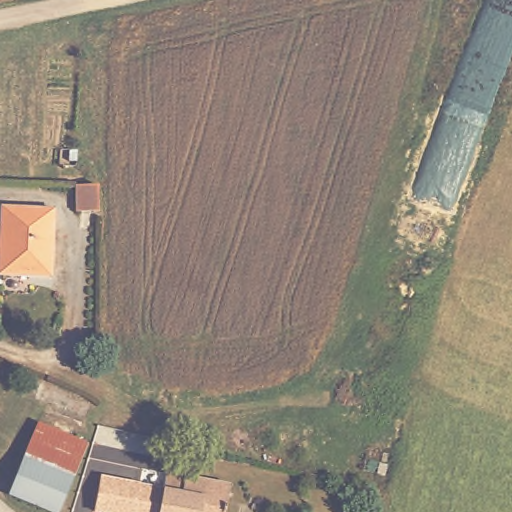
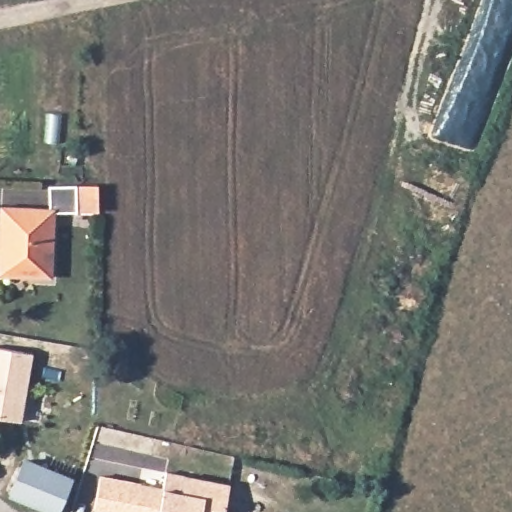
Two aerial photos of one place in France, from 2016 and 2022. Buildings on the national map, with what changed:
unchanged [(74,194),(96,194),(98,221),(75,221),(74,194)]
unchanged [(0,271),(0,203),(53,205),(53,273),(0,271)]
new [(34,353),(23,422),(0,418),(0,347),(34,353)]
unchanged [(223,495),(236,496),(234,512),(94,512),(102,461),(226,476),(223,495)]
unchanged [(46,512),(12,502),(24,468),(68,480),(58,512),(46,512)]

